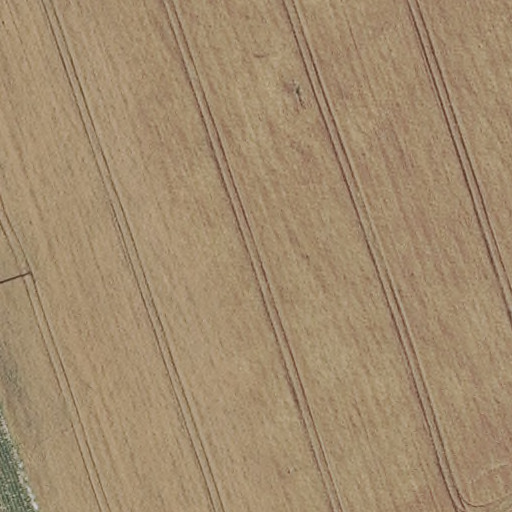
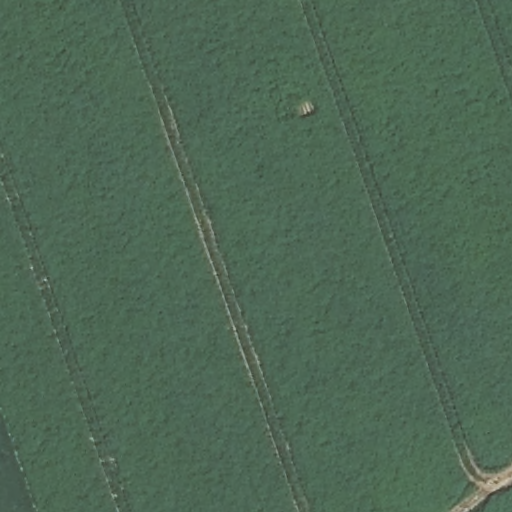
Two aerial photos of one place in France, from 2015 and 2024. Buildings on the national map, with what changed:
[]

